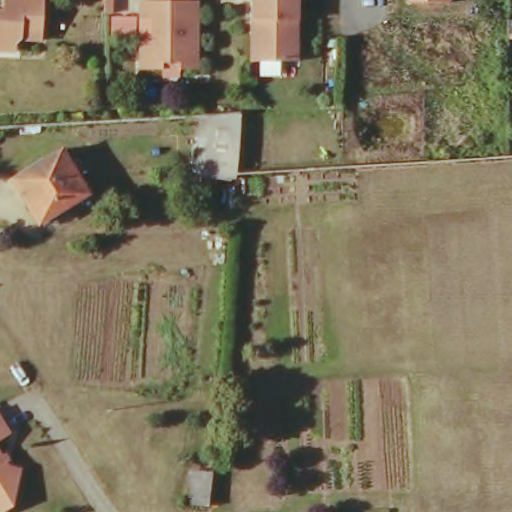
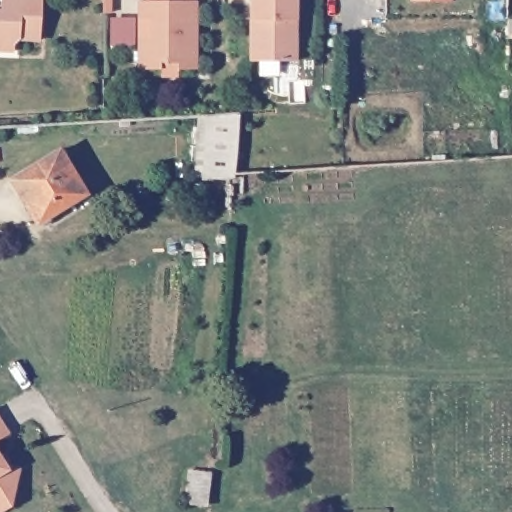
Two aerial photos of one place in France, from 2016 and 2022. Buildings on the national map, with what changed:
unchanged [(40,0),(37,38),(37,41),(18,40),(12,44),(12,52),(0,51),(0,0),(40,0)]
unchanged [(190,0),(190,6),(144,6),(144,0),(190,0)]
unchanged [(248,65),(248,41),(248,24),(249,0),(293,0),(293,42),(292,66),(254,65),(248,65)]
unchanged [(410,2),(410,0),(452,0),(452,2),(410,2)]
unchanged [(151,25),(139,24),(140,5),(144,6),(190,6),(195,6),(195,40),(150,40),(151,25)]
unchanged [(177,74),(177,67),(160,66),(160,74),(138,73),(139,49),(138,41),(150,41),(150,40),(195,40),(195,74),(177,74)]
unchanged [(205,117),(210,117),(237,116),(233,175),(233,179),(203,177),(205,117)]
unchanged [(7,179),(55,150),(82,195),(34,224),(7,179)]
unchanged [(5,439),(0,442),(0,431),(5,439)]
unchanged [(10,473),(16,475),(7,510),(4,512),(0,512),(0,459),(10,473)]
unchanged [(187,472),(208,475),(203,506),(183,503),(187,472)]

